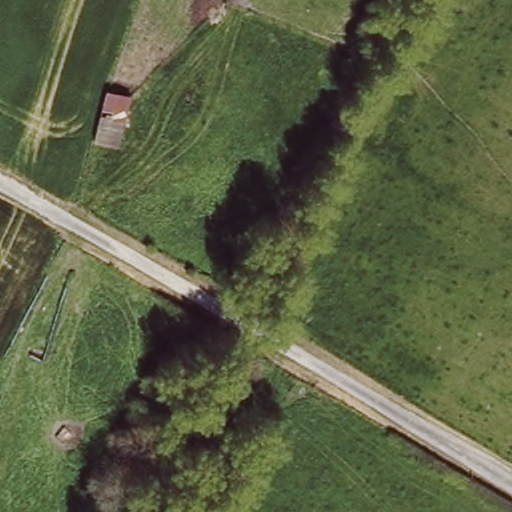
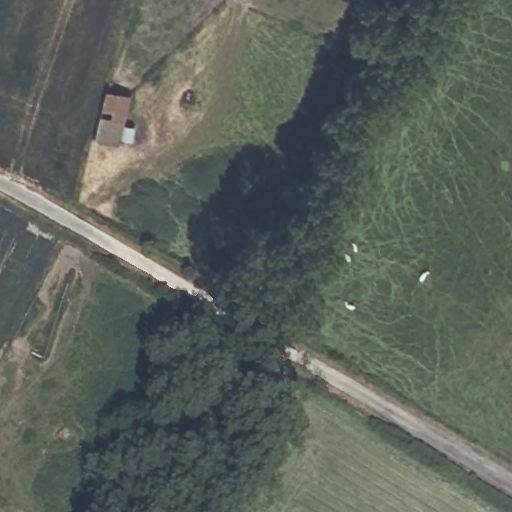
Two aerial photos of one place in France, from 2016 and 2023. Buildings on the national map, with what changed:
unchanged [(132,99),(120,144),(98,138),(109,92),(132,99)]

